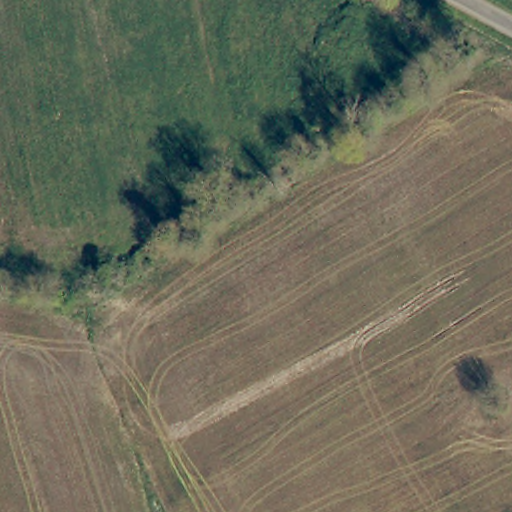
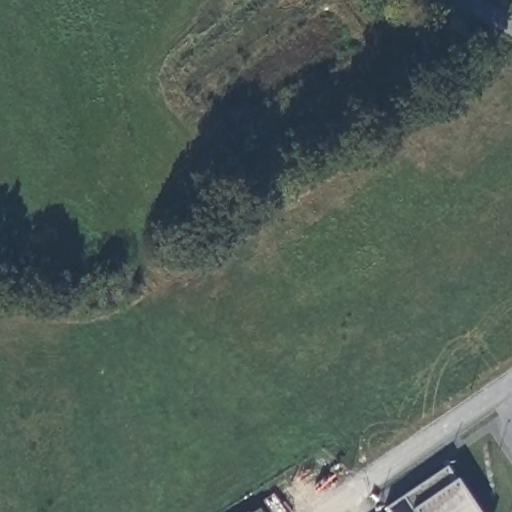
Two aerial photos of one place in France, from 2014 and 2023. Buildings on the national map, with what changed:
new [(383,509),(443,467),(453,482),(473,512),(386,512),(383,509)]

